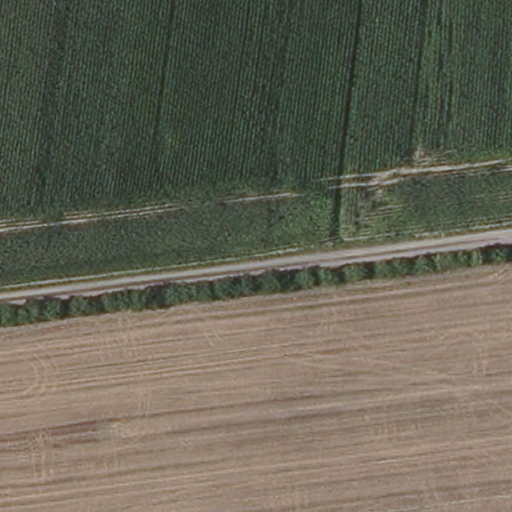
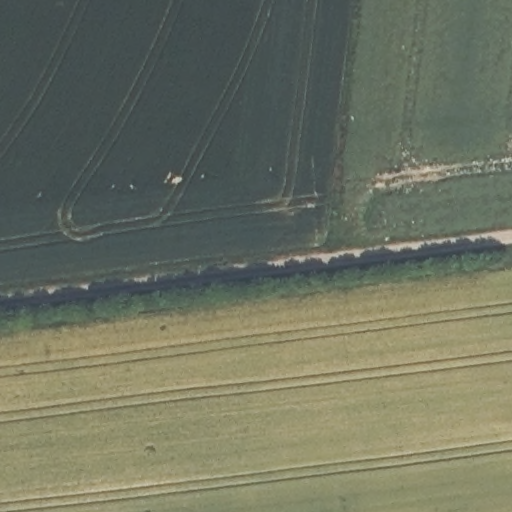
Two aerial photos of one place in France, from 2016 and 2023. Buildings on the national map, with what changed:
[]

